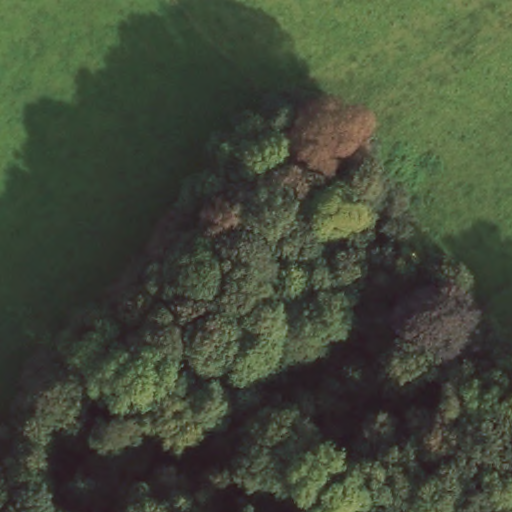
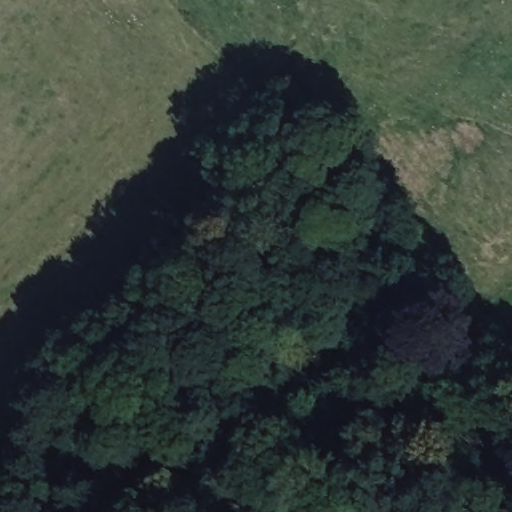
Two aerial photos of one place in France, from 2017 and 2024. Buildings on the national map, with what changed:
unchanged [(420,186),(400,200),(372,164),(392,150),(420,186)]

